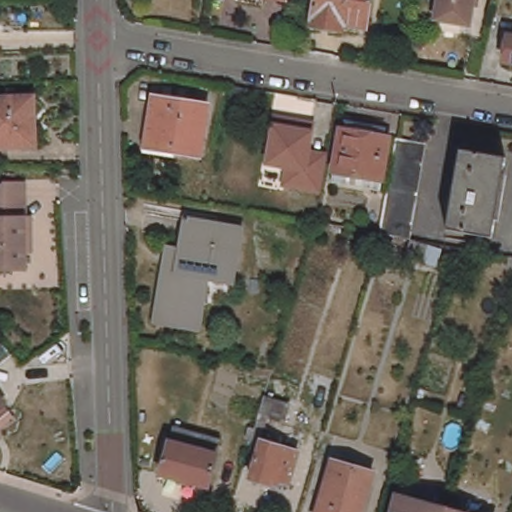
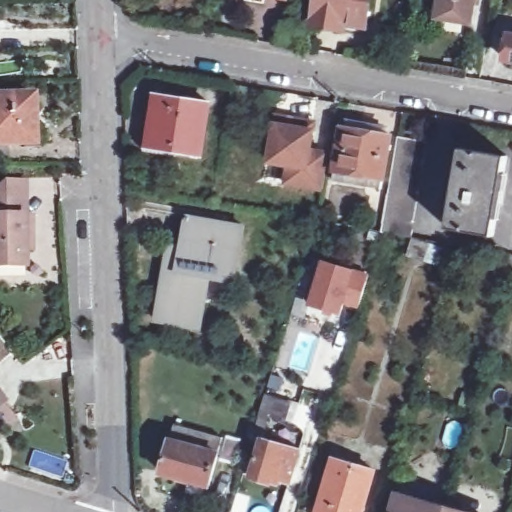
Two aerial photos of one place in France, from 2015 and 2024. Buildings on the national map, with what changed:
unchanged [(365,22),(342,18),(341,25),(312,20),(316,0),(368,0),(365,22)]
unchanged [(469,19),(436,14),(438,0),(472,0),(469,19)]
unchanged [(507,38),(512,39),(512,66),(503,64),(507,38)]
unchanged [(207,102),(201,151),(175,147),(175,144),(150,140),(156,94),(207,102)]
unchanged [(33,143),(0,144),(0,98),(32,97),(33,143)]
unchanged [(298,123),(300,115),(317,118),(312,153),(331,156),(330,163),(327,184),(289,178),(292,160),(272,157),(279,119),(298,123)]
unchanged [(337,177),(339,166),(347,124),(395,133),(387,175),(386,184),(337,177)]
unchanged [(384,227),(402,134),(430,139),(412,233),(384,227)]
unchanged [(464,149),(510,157),(495,236),(450,228),(464,149)]
unchanged [(6,181),(26,180),(27,195),(27,214),(31,214),(32,239),(27,239),(28,265),(0,266),(0,196),(6,196),(6,181)]
unchanged [(167,247),(180,249),(185,219),(242,229),(234,282),(207,277),(198,330),(156,322),(167,247)]
new [(321,257),(371,271),(357,317),(307,308),(321,257)]
new [(0,366),(0,337),(14,353),(0,366)]
unchanged [(0,395),(6,401),(0,406),(0,395)]
unchanged [(223,446),(209,491),(161,478),(175,431),(223,446)]
unchanged [(298,447),(290,479),(272,474),(270,480),(252,475),(262,437),(298,447)]
unchanged [(360,512),(317,512),(332,459),(372,471),(360,512)]
unchanged [(396,512),(402,493),(469,512),(396,512)]

